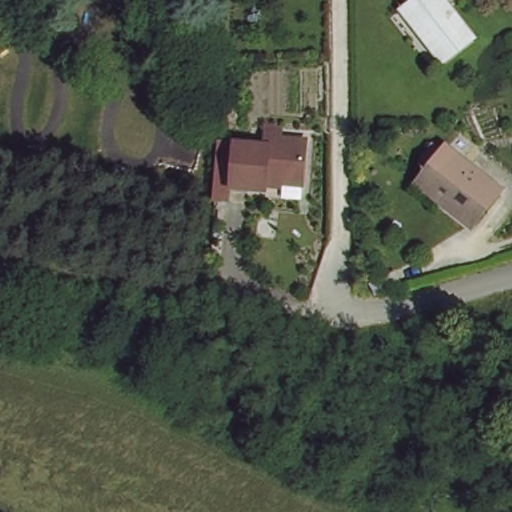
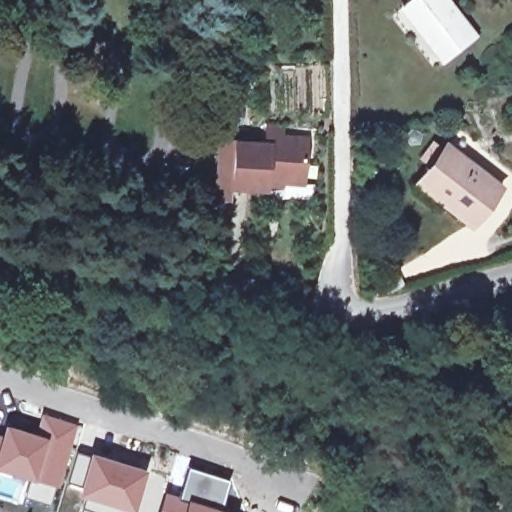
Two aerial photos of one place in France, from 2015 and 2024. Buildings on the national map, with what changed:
unchanged [(450,61),(405,6),(412,0),(444,0),(476,40),(450,61)]
unchanged [(232,133),(279,138),(280,130),(303,131),(299,177),(263,173),(262,181),(227,178),(232,133)]
unchanged [(495,191),(472,221),(418,177),(442,148),(495,191)]
new [(0,434),(4,422),(35,431),(42,412),(78,424),(57,488),(53,486),(48,502),(25,495),(30,479),(0,469),(0,433),(0,434)]
new [(77,451),(88,454),(89,451),(146,467),(132,512),(130,512),(97,504),(77,495),(80,484),(67,480),(77,451)]
new [(187,465),(230,479),(222,508),(177,494),(187,465)]
new [(163,490),(177,494),(222,508),(235,512),(157,512),(163,490)]

